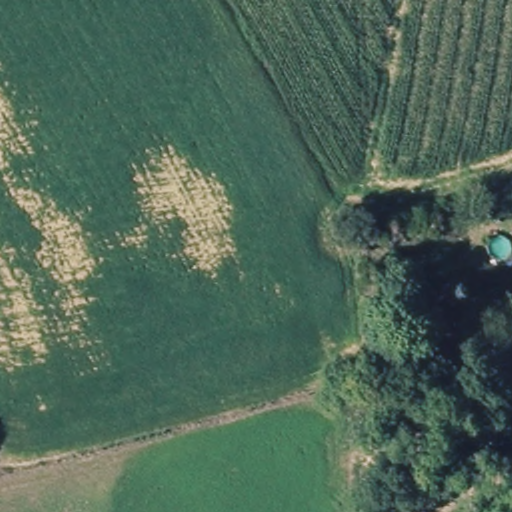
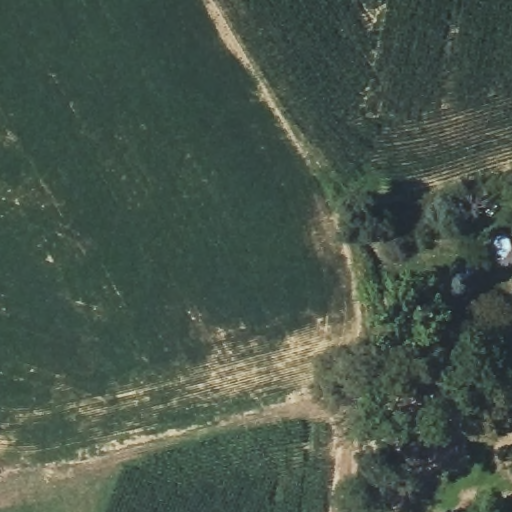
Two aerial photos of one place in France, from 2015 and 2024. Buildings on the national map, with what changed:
[]

